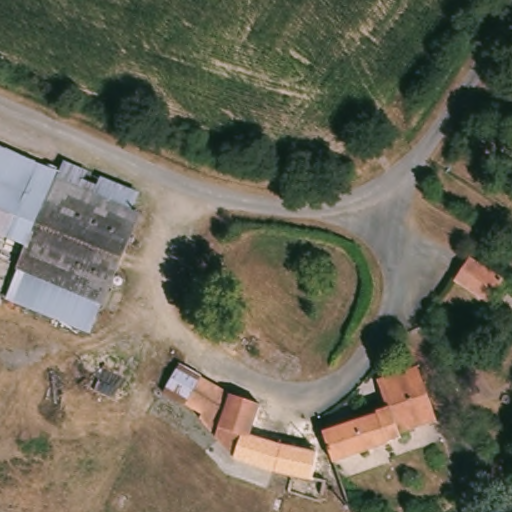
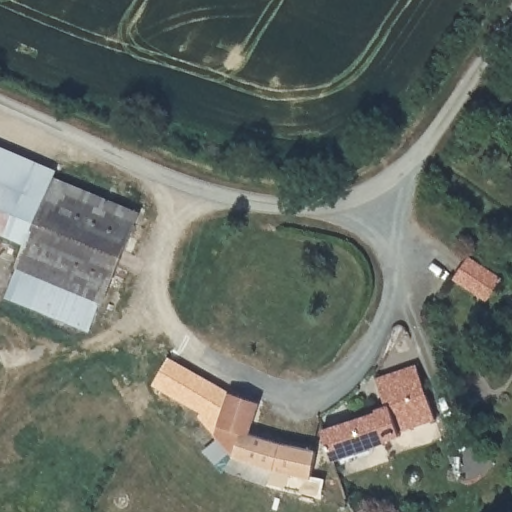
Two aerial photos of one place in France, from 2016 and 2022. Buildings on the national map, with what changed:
unchanged [(54,181),(26,247),(0,236),(0,158),(54,181)]
unchanged [(141,217),(102,306),(17,269),(26,247),(54,181),(141,217)]
unchanged [(459,277),(471,257),(506,278),(492,301),(458,281),(458,280),(459,277)]
unchanged [(17,269),(102,306),(91,333),(5,297),(17,269)]
unchanged [(422,362),(431,392),(392,405),(395,417),(386,419),(382,410),(381,406),(388,404),(381,376),(422,362)]
unchanged [(179,401),(195,375),(224,393),(256,403),(246,434),(276,443),(269,471),(229,454),(195,414),(194,413),(196,410),(179,401)]
unchanged [(158,389),(163,381),(179,401),(158,389)]
unchanged [(386,419),(395,417),(392,405),(431,392),(438,418),(401,429),(403,433),(391,436),(386,419)]
unchanged [(382,410),(386,419),(391,436),(390,437),(391,438),(334,457),(325,427),(382,410)]
unchanged [(313,452),(307,476),(321,480),(315,501),(281,492),(286,475),(269,471),(276,443),(313,452)]
unchanged [(370,512),(364,512),(368,509),(370,512)]

